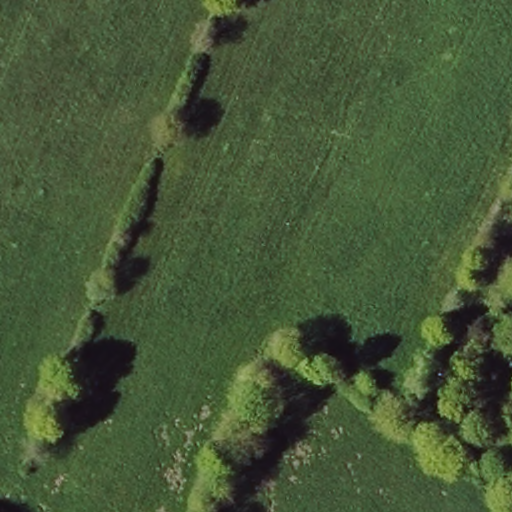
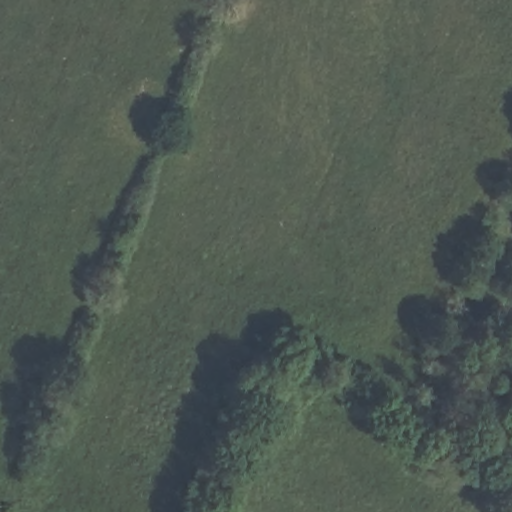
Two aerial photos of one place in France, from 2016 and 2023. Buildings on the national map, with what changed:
unchanged [(420,395),(430,373),(455,388),(445,410),(420,395)]

